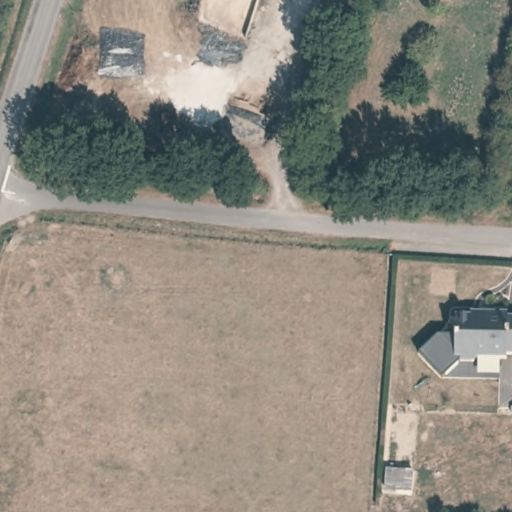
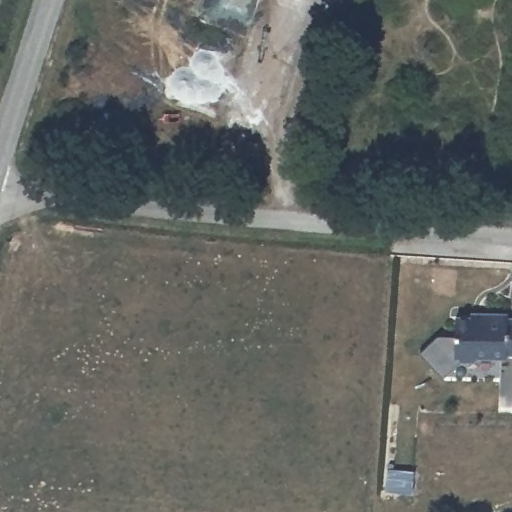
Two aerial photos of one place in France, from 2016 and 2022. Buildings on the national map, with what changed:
unchanged [(502,363),(474,362),(470,367),(457,366),(452,362),(451,362),(451,323),(476,322),(476,318),(502,318),(502,322),(512,322),(512,357),(502,357),(502,363)]
unchanged [(412,493),(387,492),(387,472),(412,472),(412,493)]

